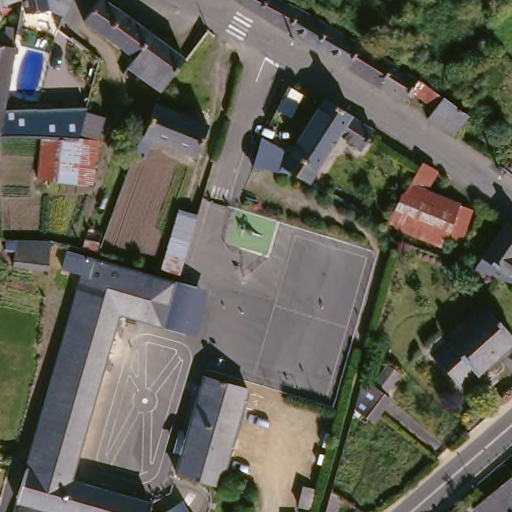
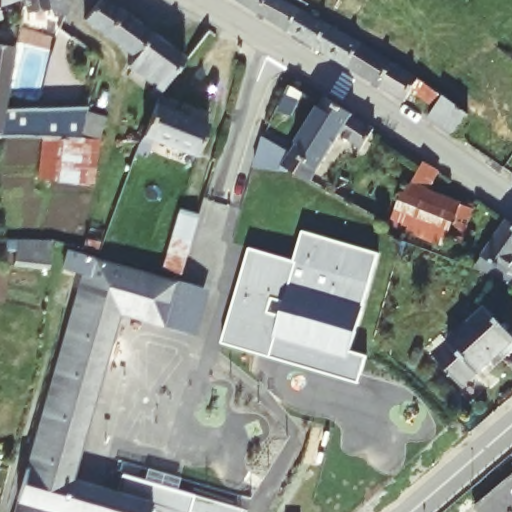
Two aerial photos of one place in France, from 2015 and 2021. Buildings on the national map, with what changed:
unchanged [(0,0),(12,0),(0,4),(0,0)]
unchanged [(48,16),(45,10),(22,13),(18,0),(69,0),(60,21),(48,16)]
unchanged [(124,68),(130,60),(100,36),(81,22),(96,0),(100,0),(117,13),(180,60),(156,91),(130,73),(124,80),(120,76),(125,69),(124,68)]
unchanged [(430,114),(422,108),(411,101),(406,98),(404,101),(400,106),(400,107),(398,106),(374,91),(343,73),(254,18),(224,0),(266,0),(298,17),(357,50),(388,69),(413,84),(420,89),(430,96),(440,103),(463,120),(450,141),(423,124),(430,114)]
unchanged [(4,30),(12,31),(10,48),(0,105),(0,34),(3,35),(4,30)]
unchanged [(258,140),(285,155),(320,99),(348,117),(347,119),(369,134),(357,150),(336,136),(306,185),(285,171),(283,174),(267,172),(250,169),(258,140)]
unchanged [(204,126),(190,158),(139,137),(152,104),(154,105),(204,126)]
unchanged [(37,139),(23,138),(0,138),(0,110),(84,108),(82,114),(98,119),(92,142),(92,143),(87,185),(51,181),(32,178),(37,139)]
unchanged [(413,164),(429,173),(418,192),(450,204),(463,211),(450,244),(437,238),(432,249),(378,226),(413,164)]
unchanged [(162,255),(175,215),(193,221),(175,279),(156,274),(137,269),(144,250),(162,255)]
unchanged [(507,222),(512,225),(512,284),(474,270),(507,222)]
new [(223,343),(250,250),(297,263),(303,233),(378,255),(351,353),(367,358),(359,386),(223,343)]
unchanged [(51,241),(48,269),(14,269),(14,241),(51,241)]
unchanged [(77,280),(59,274),(63,256),(170,286),(156,330),(114,318),(65,486),(147,509),(149,512),(12,512),(77,280)]
unchanged [(170,285),(202,294),(189,341),(156,330),(170,286),(170,285)]
unchanged [(510,346),(472,381),(470,379),(455,393),(421,355),(435,342),(442,349),(481,313),(510,346)]
demolished [(369,386),(383,366),(395,374),(380,394),(386,399),(368,424),(350,410),(359,379),(369,386)]
demolished [(244,390),(216,485),(172,473),(200,377),(244,390)]
unchanged [(512,477),(512,512),(476,512),(473,509),(512,477)]

